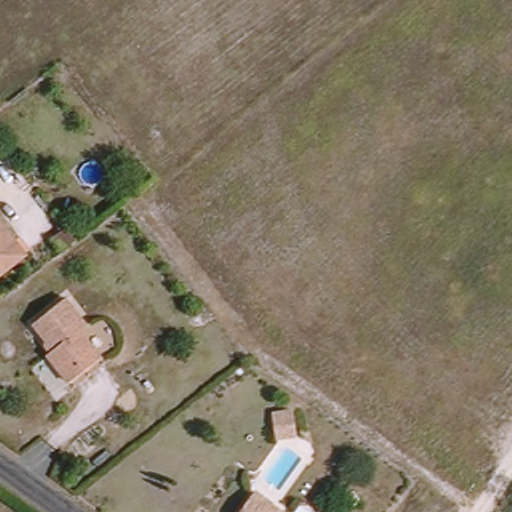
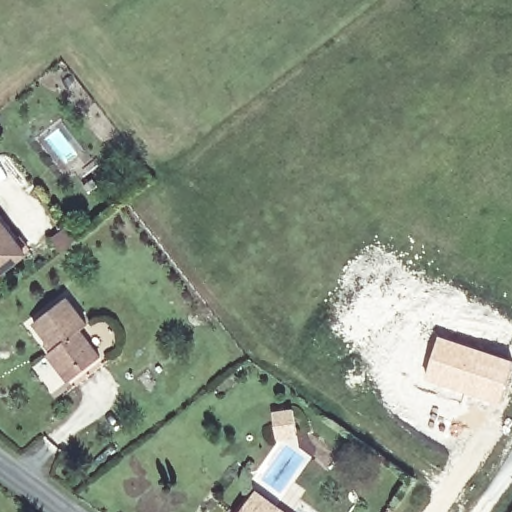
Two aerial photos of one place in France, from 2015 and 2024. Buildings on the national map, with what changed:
unchanged [(0,276),(0,220),(27,255),(0,276)]
unchanged [(70,384),(49,356),(55,350),(34,321),(67,297),(89,327),(84,331),(103,358),(70,384)]
new [(437,335),(512,359),(512,369),(499,405),(422,380),(437,335)]
unchanged [(277,437),(276,430),(275,412),(295,410),(296,428),(297,435),(277,437)]
unchanged [(283,512),(239,512),(254,492),(283,512)]

